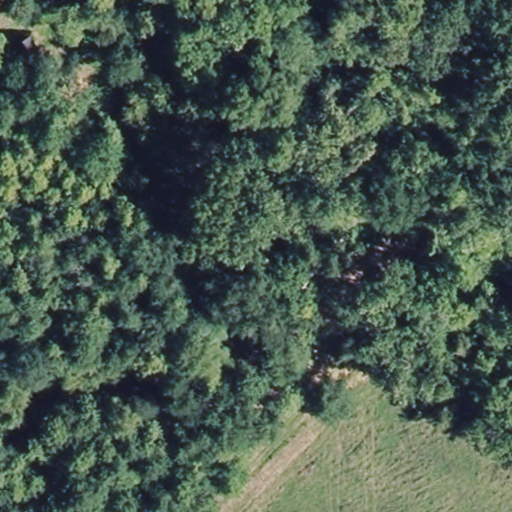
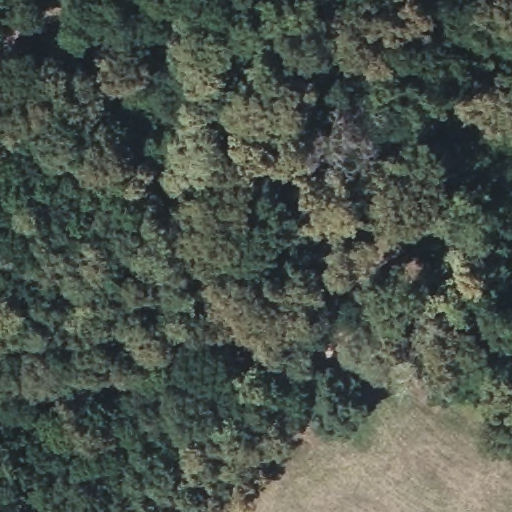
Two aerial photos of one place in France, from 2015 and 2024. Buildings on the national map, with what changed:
[]

